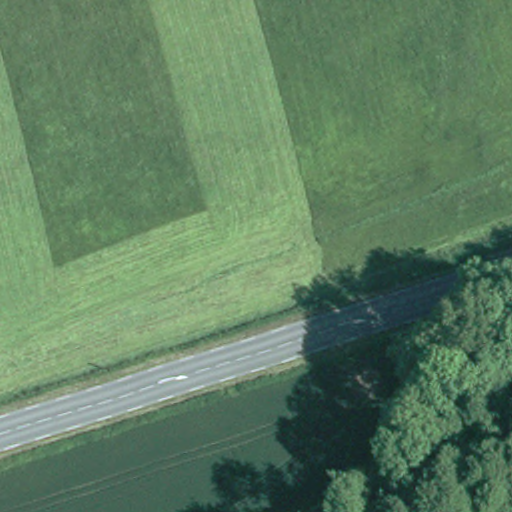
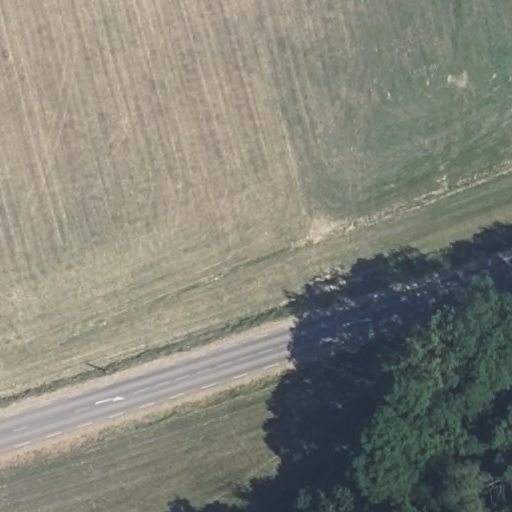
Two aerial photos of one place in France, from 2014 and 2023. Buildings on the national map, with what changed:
[]

